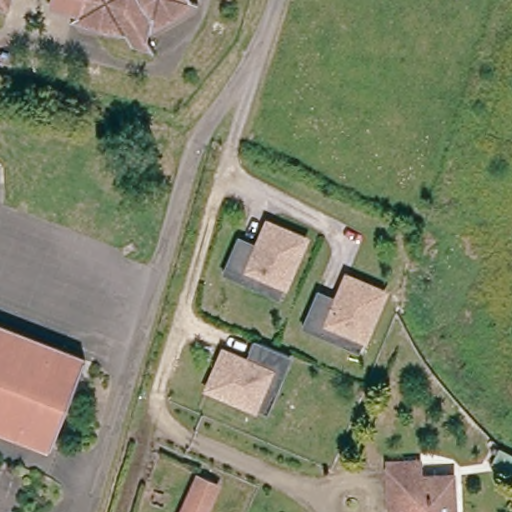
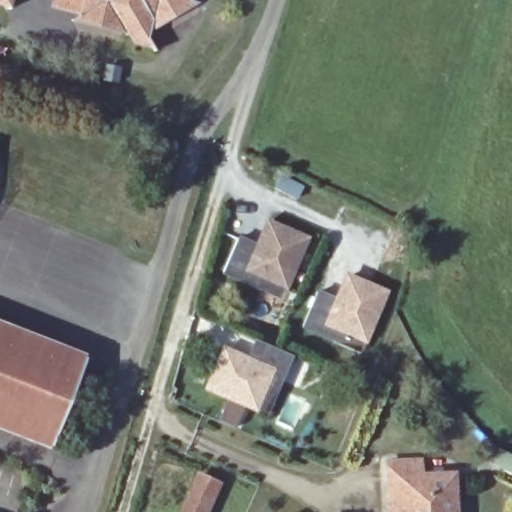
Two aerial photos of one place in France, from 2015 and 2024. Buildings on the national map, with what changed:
unchanged [(80,14),(51,6),(53,0),(83,0),(80,14)]
unchanged [(187,1),(152,21),(146,41),(126,35),(121,27),(79,15),(80,14),(83,0),(186,0),(187,1)]
unchanged [(254,287),(220,273),(234,240),(254,249),(264,226),(265,224),(303,240),(302,242),(282,287),(278,298),(254,287)]
unchanged [(334,340),(299,327),(314,293),(334,302),(345,276),(379,291),(382,293),(381,295),(362,340),(357,351),(334,340)]
unchanged [(45,441),(0,424),(0,323),(79,353),(45,441)]
unchanged [(255,408),(207,387),(224,350),(248,360),(257,340),(290,355),(276,389),(265,413),(255,408)]
unchanged [(500,447),(501,448),(512,454),(512,471),(493,461),(500,447)]
unchanged [(420,460),(421,475),(454,475),(455,512),(401,512),(389,512),(388,461),(420,460)]
unchanged [(218,483),(205,512),(182,512),(199,475),(218,483)]

